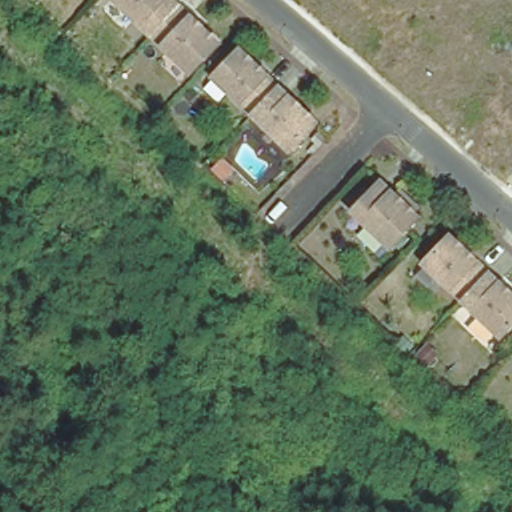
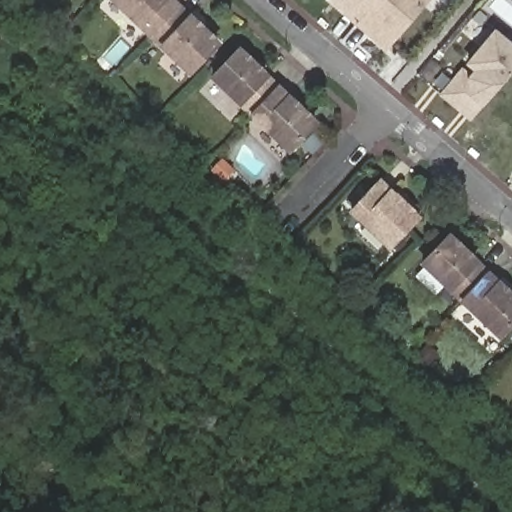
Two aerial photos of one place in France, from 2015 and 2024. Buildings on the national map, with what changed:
unchanged [(115,0),(173,0),(179,6),(169,16),(151,35),(115,0)]
new [(370,35),(330,0),(421,0),(420,2),(422,4),(386,45),(384,48),(370,35)]
unchanged [(216,42),(189,71),(151,35),(169,16),(179,6),(216,42)]
new [(495,28),(512,43),(512,71),(511,73),(506,78),(502,83),(482,107),(471,121),(438,95),(462,67),(470,74),(472,71),(465,64),(495,28)]
unchanged [(277,87),(250,114),(212,77),(238,50),(277,87)]
unchanged [(315,123),(288,151),(250,114),(277,87),(315,123)]
unchanged [(197,146),(206,155),(199,162),(190,153),(197,146)]
unchanged [(220,160),(231,171),(220,182),(209,171),(220,160)]
unchanged [(417,218),(390,247),(352,211),(380,182),(417,218)]
unchanged [(422,264),(447,237),(486,274),(460,301),(422,264)]
unchanged [(512,323),(498,338),(460,301),(486,274),(512,298),(512,323)]

